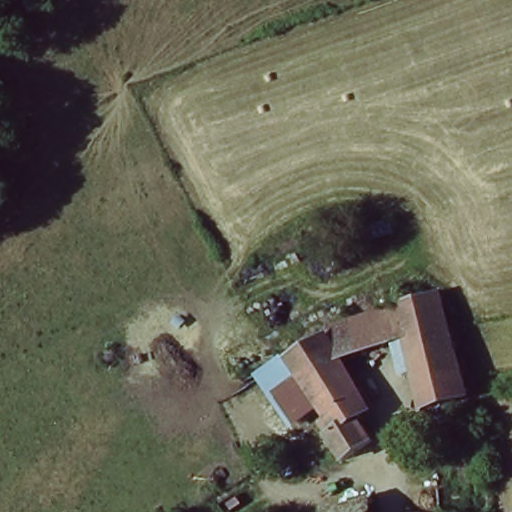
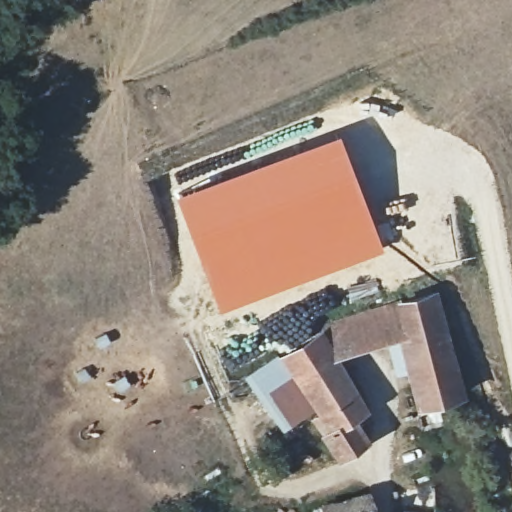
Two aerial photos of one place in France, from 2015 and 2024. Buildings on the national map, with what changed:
new [(201,184),(339,133),(383,246),(257,295),(217,307),(174,195),(201,184)]
unchanged [(307,413),(292,423),(270,390),(292,375),(278,353),(324,326),(440,286),(471,395),(420,408),(400,338),(342,356),(372,406),(360,416),(373,438),(337,458),(307,413)]
unchanged [(370,495),(374,512),(321,512),(319,503),(370,495)]

